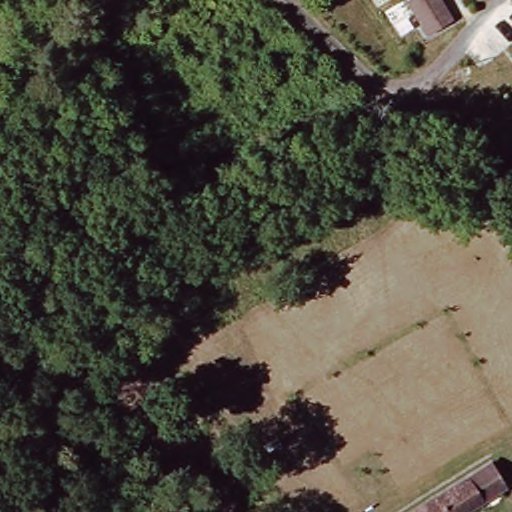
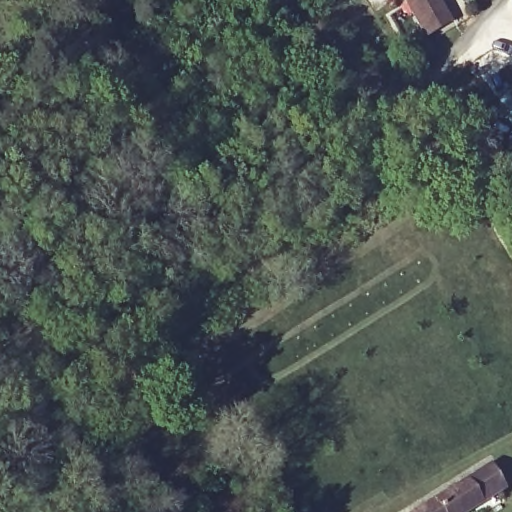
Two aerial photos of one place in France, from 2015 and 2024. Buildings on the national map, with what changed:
unchanged [(409,2),(413,0),(432,0),(444,22),(437,27),(427,37),(409,2)]
unchanged [(476,512),(419,512),(490,467),(507,492),(476,512)]

